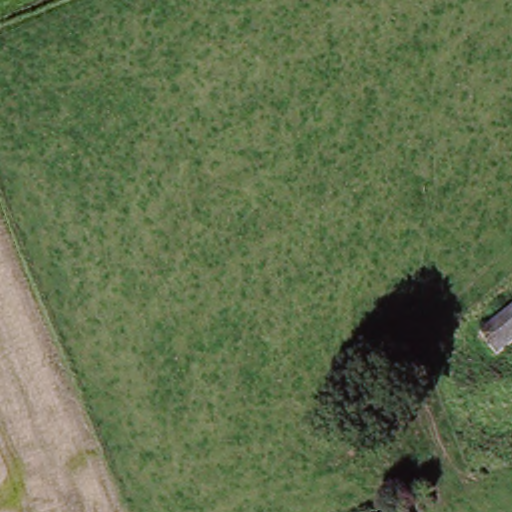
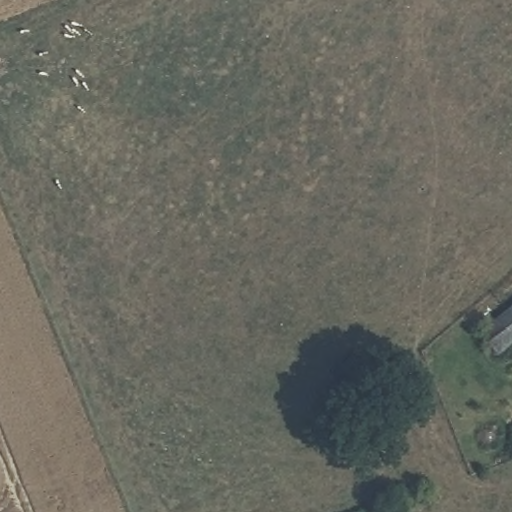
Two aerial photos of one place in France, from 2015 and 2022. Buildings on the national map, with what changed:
unchanged [(499,359),(478,334),(512,305),(512,347),(499,359)]

